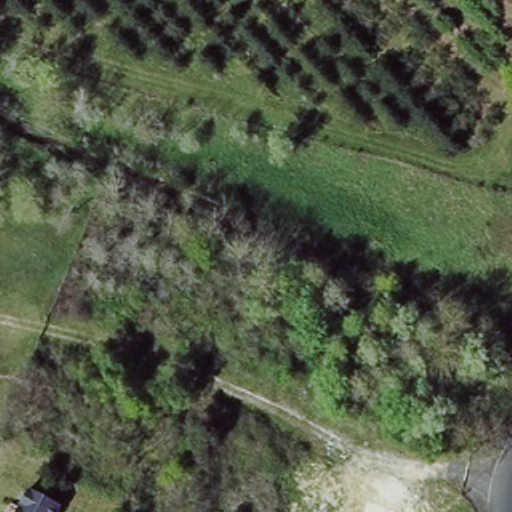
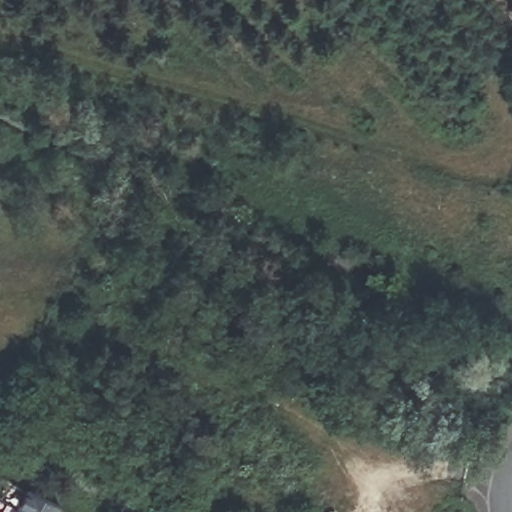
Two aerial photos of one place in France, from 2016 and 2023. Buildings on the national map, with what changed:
unchanged [(62,505),(58,512),(17,512),(30,488),(62,505)]

